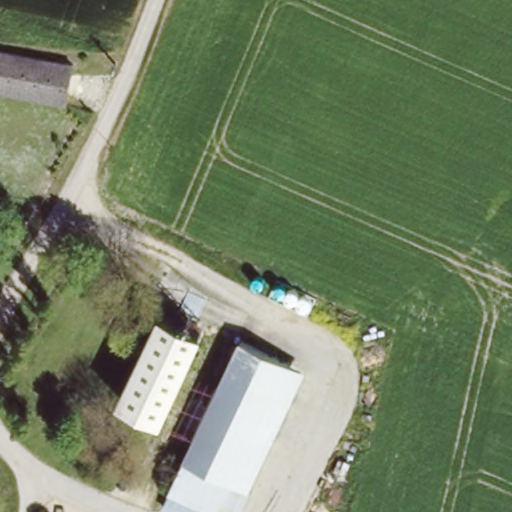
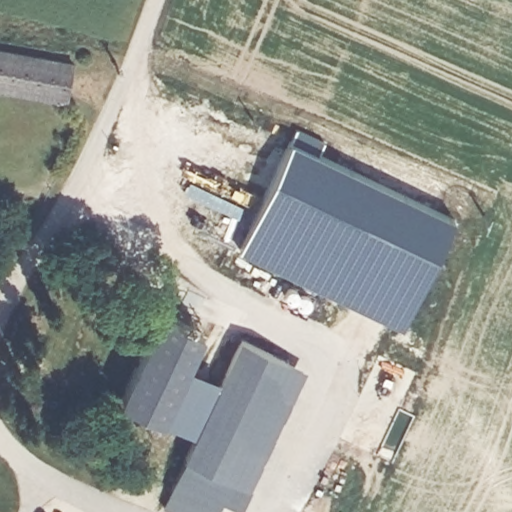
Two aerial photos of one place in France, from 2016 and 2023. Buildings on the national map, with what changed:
unchanged [(73,65),(63,104),(0,94),(0,50),(73,65)]
new [(293,141),(297,130),(323,143),(318,154),(455,219),(404,328),(240,252),(293,141)]
unchanged [(120,399),(162,313),(206,329),(163,421),(120,399)]
unchanged [(242,334),(305,367),(251,490),(243,507),(225,503),(216,512),(199,512),(166,500),(186,460),(242,334)]

